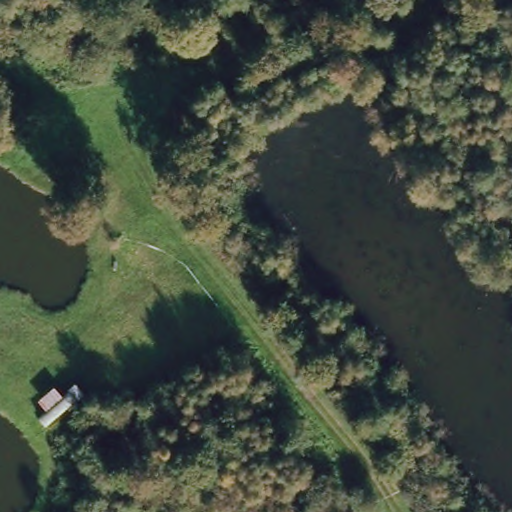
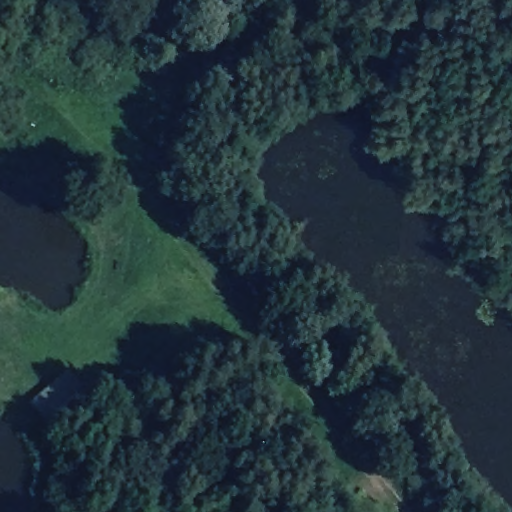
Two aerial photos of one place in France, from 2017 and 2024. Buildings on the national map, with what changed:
unchanged [(61,387),(69,398),(58,407),(63,415),(47,425),(33,403),(61,387)]

